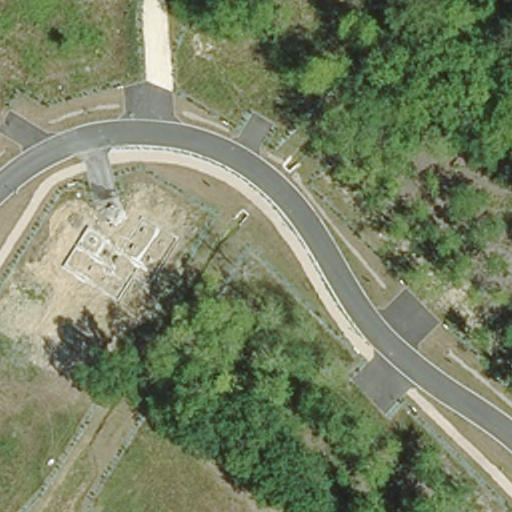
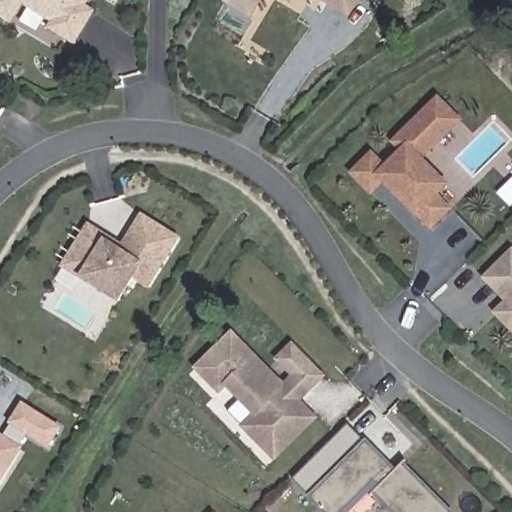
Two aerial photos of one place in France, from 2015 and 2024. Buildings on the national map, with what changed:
new [(86,5),(94,10),(74,45),(46,29),(50,21),(22,5),(10,24),(0,17),(0,0),(89,0),(86,5)]
new [(261,0),(250,19),(223,1),(224,0),(261,0)]
new [(359,0),(348,16),(319,0),(359,0)]
new [(423,159),(449,185),(439,195),(451,209),(429,230),(414,215),(382,185),(370,195),(349,173),(371,151),(384,165),(399,151),(390,141),(437,95),(461,120),(423,159)]
new [(133,280),(118,303),(79,279),(60,266),(85,224),(105,239),(119,247),(140,212),(181,237),(148,288),(133,280)]
new [(491,312),(502,300),(481,278),(512,248),(512,334),(491,312)]
new [(252,415),(226,388),(218,394),(193,367),(231,328),(283,382),(290,376),(274,358),(291,341),(325,377),(300,401),(317,418),(274,461),(240,426),(252,415)]
new [(60,426),(48,447),(8,422),(20,401),(60,426)]
new [(0,434),(20,447),(0,482),(0,434)]
new [(372,494),(353,512),(321,512),(306,496),(366,438),(395,470),(404,461),(453,512),(389,512),(372,494)]

